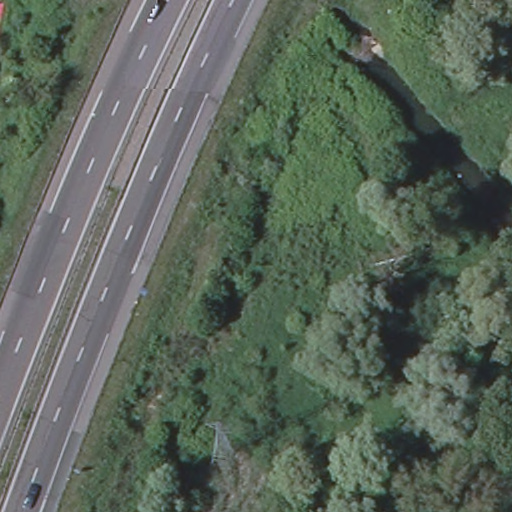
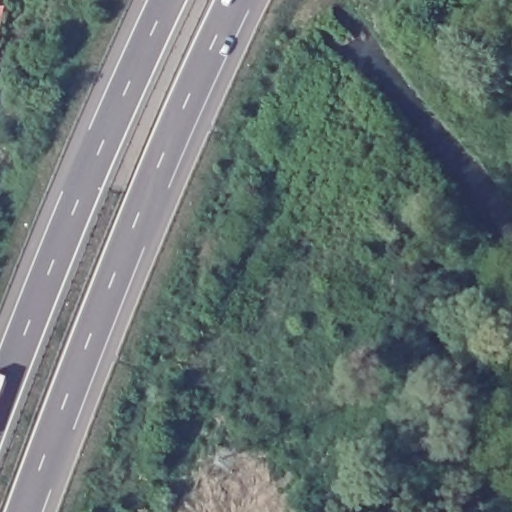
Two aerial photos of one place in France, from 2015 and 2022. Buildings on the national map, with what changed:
unchanged [(0,34),(0,7),(3,7),(0,34)]

